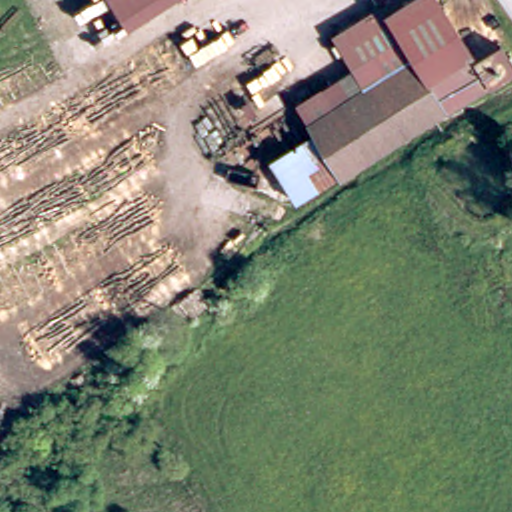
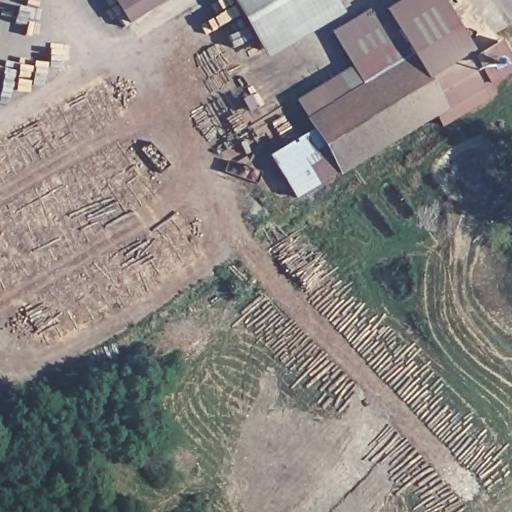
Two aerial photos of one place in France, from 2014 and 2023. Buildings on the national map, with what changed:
unchanged [(124,0),(152,0),(132,12),(124,0)]
new [(267,59),(231,0),(336,0),(344,14),(267,59)]
unchanged [(512,82),(487,97),(474,104),(440,125),(415,83),(399,56),(383,28),(430,0),(472,71),(497,56),(512,81),(512,82)]
unchanged [(295,116),(352,83),(331,48),(379,21),(383,28),(399,56),(415,83),(312,144),(295,116)]
unchanged [(312,144),(415,83),(440,125),(336,185),(312,144)]
unchanged [(300,206),(292,211),(268,170),(312,144),(336,185),(300,206)]

